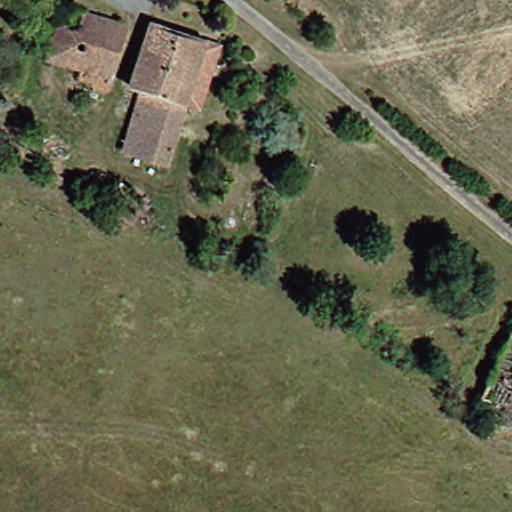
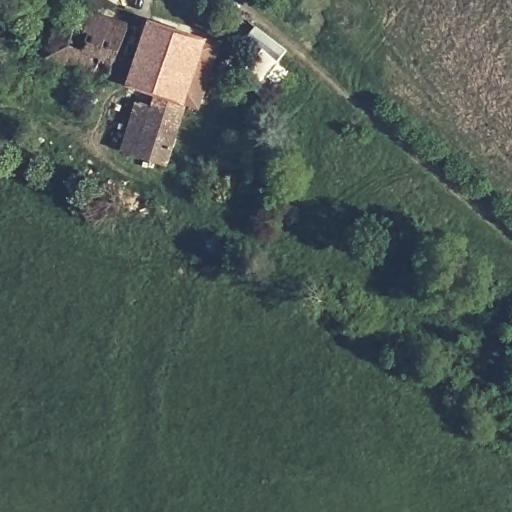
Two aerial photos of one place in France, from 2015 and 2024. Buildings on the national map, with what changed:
unchanged [(94,72),(74,66),(48,58),(66,7),(111,22),(94,72)]
unchanged [(125,27),(104,90),(69,80),(74,66),(94,72),(111,22),(125,27)]
unchanged [(144,89),(135,85),(157,24),(210,42),(225,47),(204,109),(190,104),(167,167),(136,155),(122,149),(144,89)]
unchanged [(482,398),(512,341),(512,412),(482,398)]

